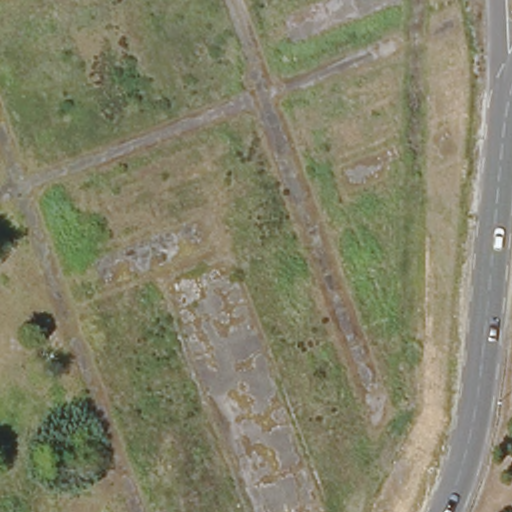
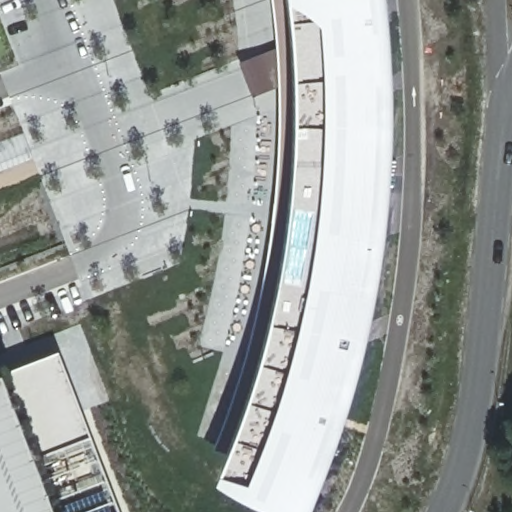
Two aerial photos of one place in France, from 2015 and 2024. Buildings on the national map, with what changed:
new [(383,172),(374,255),(362,331),(343,399),(314,483),(302,512),(288,512),(206,487),(225,434),(241,386),(256,330),(271,267),(277,190),(280,118),(277,26),(276,0),(378,0),(385,84),(383,172)]
new [(60,344),(125,512),(0,512),(0,367),(60,344)]

